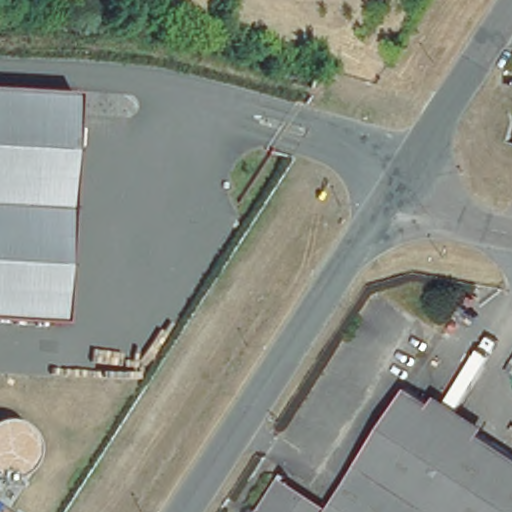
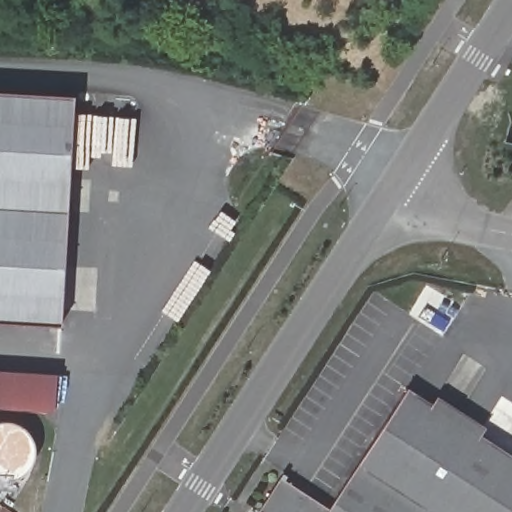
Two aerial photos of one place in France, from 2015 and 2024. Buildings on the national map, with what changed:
unchanged [(163,1),(188,7),(190,0),(210,0),(212,1),(206,24),(160,12),(163,1)]
unchanged [(59,323),(0,321),(0,94),(72,98),(59,323)]
new [(57,374),(55,412),(0,408),(0,370),(57,374)]
unchanged [(512,512),(258,512),(282,474),(331,507),(405,395),(428,411),(435,401),(486,435),(480,443),(512,464),(512,512)]

